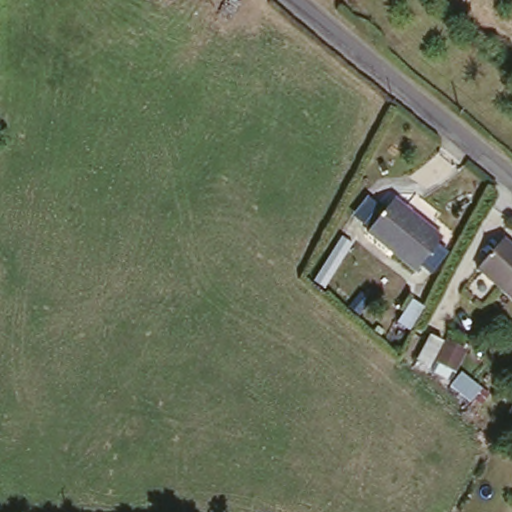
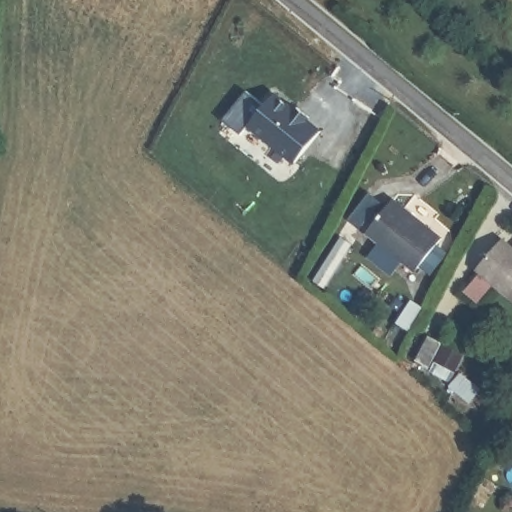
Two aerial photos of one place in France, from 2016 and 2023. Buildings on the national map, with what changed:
new [(275,91),(322,131),(294,164),(248,127),(275,91)]
unchanged [(442,246),(414,278),(366,237),(393,206),(442,246)]
unchanged [(357,238),(331,284),(319,277),(345,232),(357,238)]
unchanged [(512,299),(481,274),(507,244),(512,248),(512,299)]
unchanged [(447,337),(434,361),(421,354),(434,330),(447,337)]

